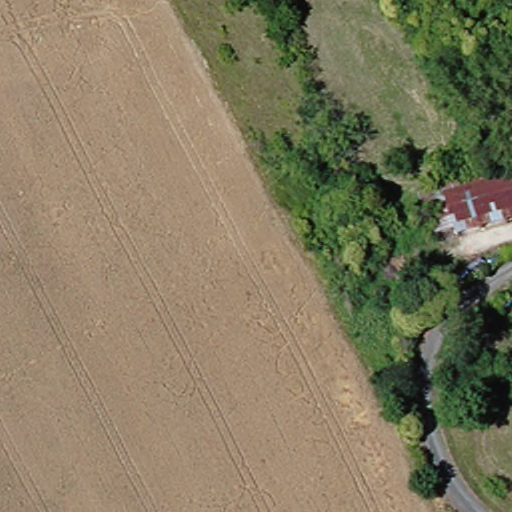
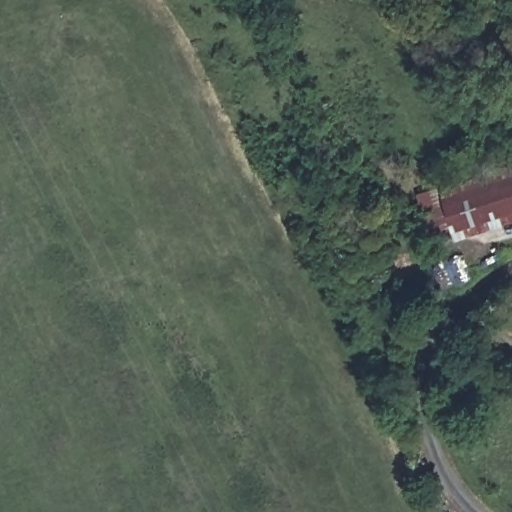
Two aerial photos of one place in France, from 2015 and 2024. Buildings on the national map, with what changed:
unchanged [(512,174),(512,214),(476,226),(460,178),(508,162),(512,174)]
unchanged [(452,234),(449,226),(436,186),(460,178),(476,226),(452,234)]

